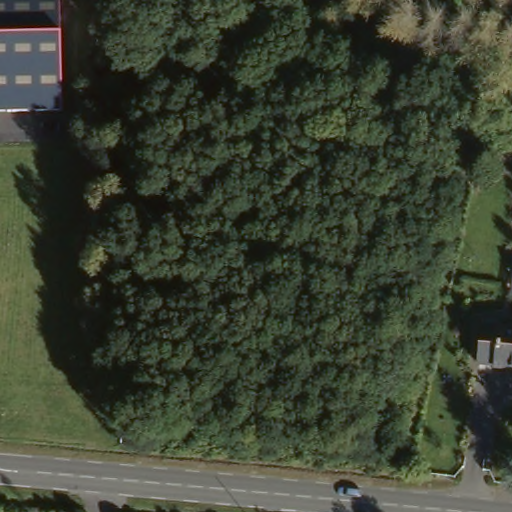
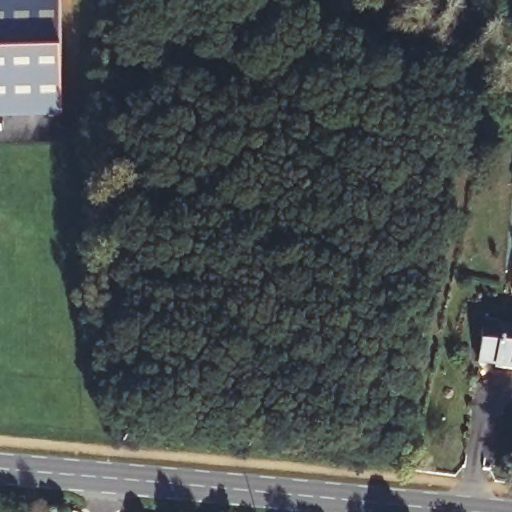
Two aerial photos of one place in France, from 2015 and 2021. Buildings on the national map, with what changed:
unchanged [(56,0),(59,115),(0,117),(0,0),(56,0)]
unchanged [(502,363),(486,362),(488,325),(512,327),(512,369),(501,369),(502,363)]

